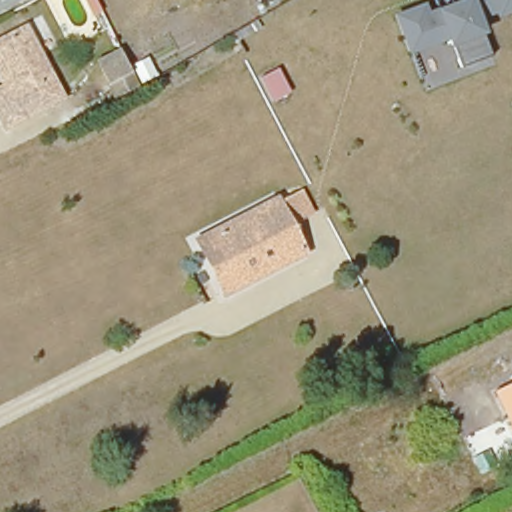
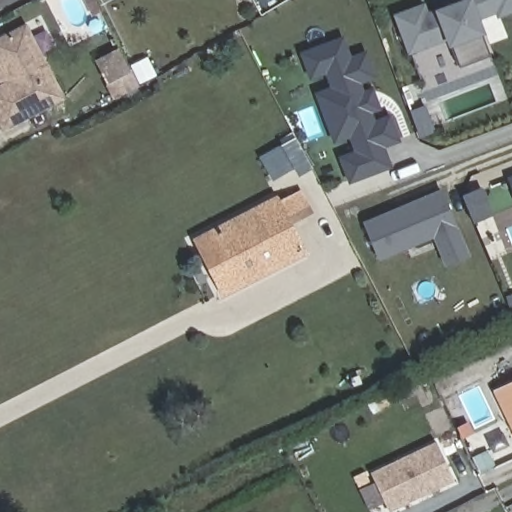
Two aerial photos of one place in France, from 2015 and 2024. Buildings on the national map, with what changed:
unchanged [(454,4),(453,0),(512,0),(512,16),(484,26),(486,34),(494,58),(460,71),(449,42),(410,56),(395,13),(427,3),(430,11),(436,10),(454,4)]
unchanged [(5,129),(0,120),(0,91),(2,90),(0,85),(0,43),(24,31),(60,99),(5,129)]
new [(343,40),(351,61),(367,55),(375,76),(359,83),(364,95),(373,91),(380,108),(371,111),(375,124),(391,118),(399,141),(384,146),(392,166),(353,181),(344,159),(360,153),(353,135),(337,141),(320,96),(335,90),(328,71),(313,78),(304,56),(343,40)]
unchanged [(114,96),(96,64),(117,51),(135,86),(114,96)]
demolished [(272,103),(259,79),(279,69),(292,92),(272,103)]
new [(286,146),(298,168),(280,177),(269,155),(286,146)]
new [(485,187),(497,214),(478,222),(467,195),(485,187)]
unchanged [(208,272),(191,238),(271,198),(291,188),(304,215),(284,226),(295,246),(274,256),(236,275),(215,286),(208,272)]
new [(442,189),(470,256),(445,266),(433,238),(379,261),(363,222),(442,189)]
unchanged [(496,396),(512,386),(512,425),(496,396)]
new [(390,511),(372,473),(436,441),(456,481),(390,511)]

